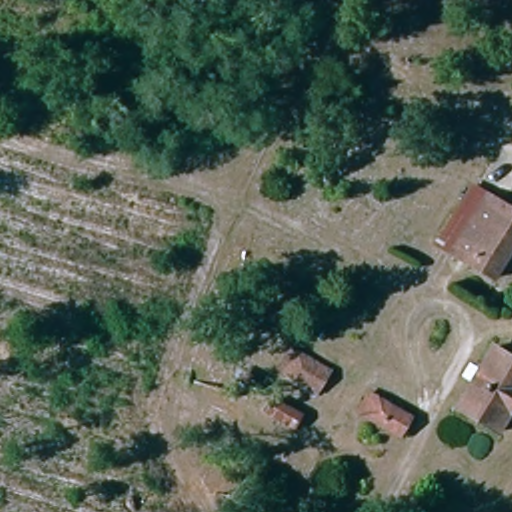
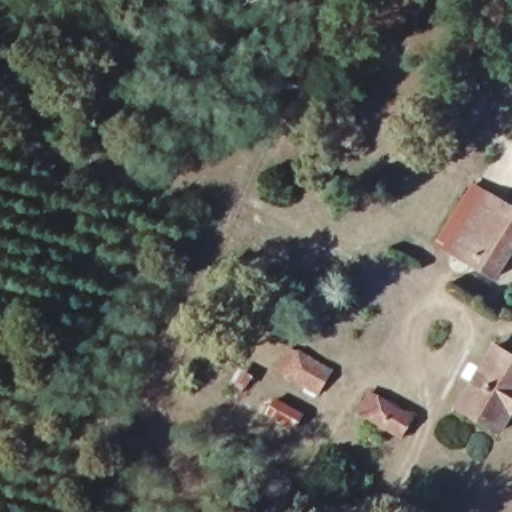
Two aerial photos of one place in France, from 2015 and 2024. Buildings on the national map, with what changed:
unchanged [(474,189),(512,213),(512,254),(494,283),(440,247),(474,189)]
unchanged [(271,377),(286,351),(332,378),(317,403),(271,377)]
unchanged [(512,368),(512,398),(488,436),(452,414),(490,355),(512,368)]
unchanged [(399,440),(360,416),(369,401),(408,426),(399,440)]

